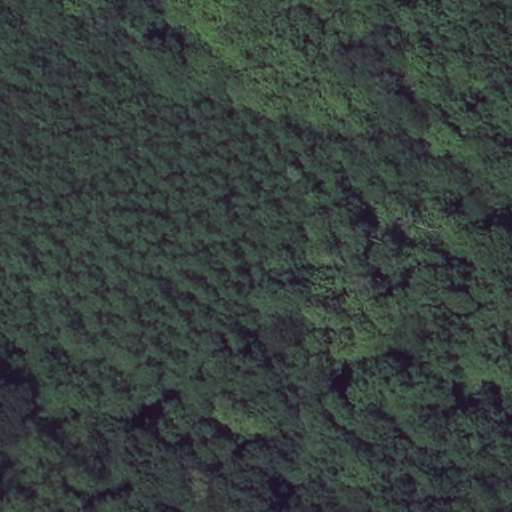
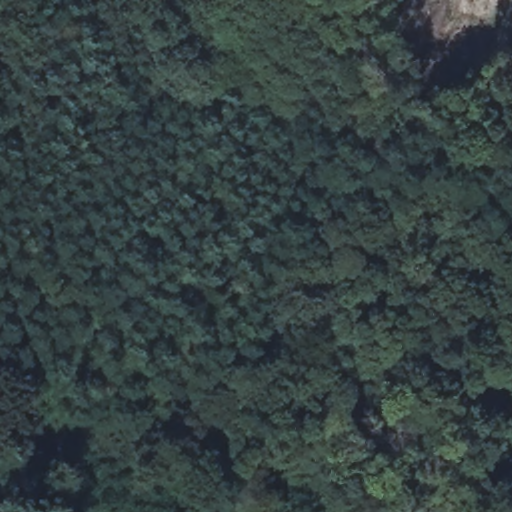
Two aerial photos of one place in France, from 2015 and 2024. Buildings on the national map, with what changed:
[]

